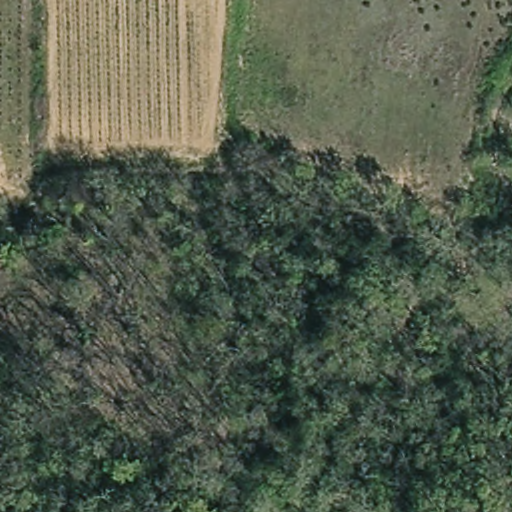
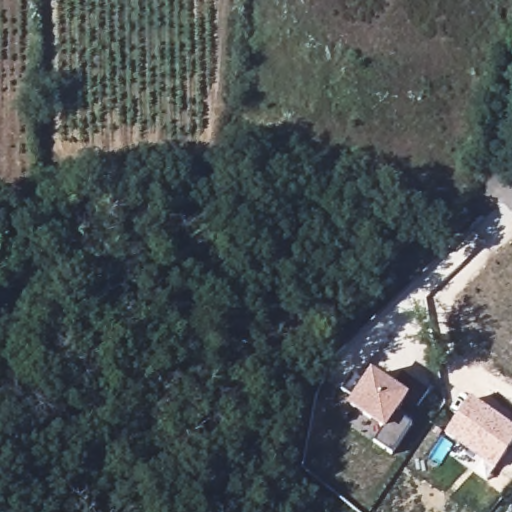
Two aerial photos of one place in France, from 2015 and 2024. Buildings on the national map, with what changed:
new [(379,428),(348,407),(353,400),(341,390),(353,375),(365,382),(372,371),(391,384),(403,372),(429,390),(419,405),(410,400),(397,416),(413,426),(392,454),(373,441),(379,428)]
new [(497,469),(447,435),(473,396),(512,423),(512,447),(497,469)]

